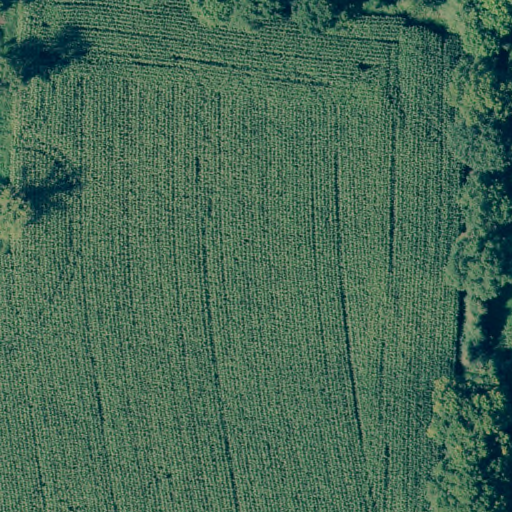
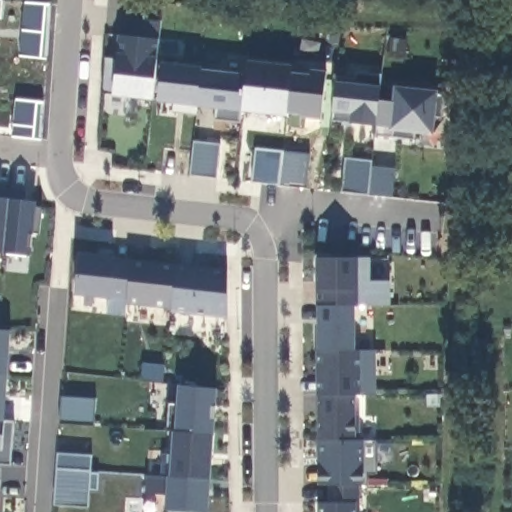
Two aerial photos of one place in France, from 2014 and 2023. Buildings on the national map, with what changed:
new [(159,40),(157,59),(152,101),(113,96),(102,94),(105,58),(117,61),(118,54),(119,35),(129,36),(132,19),(161,23),(159,40)]
new [(405,40),(403,60),(389,59),(392,39),(405,40)]
new [(321,120),(300,118),(301,116),(287,115),(285,118),(241,113),(241,123),(216,121),(215,109),(196,107),(197,116),(172,112),(175,104),(159,102),(162,63),(164,58),(179,59),(179,66),(202,68),(201,70),(247,75),(247,61),(292,66),(292,73),(310,75),(311,71),(327,72),(321,120)]
new [(342,126),(342,123),(332,122),(336,77),(355,79),(355,72),(382,75),(379,102),(395,103),(397,90),(445,95),(442,118),(432,117),(431,132),(416,131),(415,141),(392,138),(393,125),(377,123),(376,127),(351,124),(351,127),(342,126)]
new [(279,186),(264,185),(252,183),(256,149),(268,150),(283,152),(279,186)]
new [(346,159),(372,162),(371,166),(395,169),(392,197),(342,193),(346,159)]
new [(37,202),(35,233),(31,258),(0,254),(0,189),(26,192),(22,201),(37,202)]
new [(127,305),(125,316),(108,315),(110,299),(74,295),(79,254),(115,257),(131,260),(127,305)]
new [(353,305),(327,306),(317,306),(317,291),(316,258),(370,259),(371,282),(388,282),(389,305),(353,305)]
new [(228,318),(171,312),(171,309),(127,305),(131,260),(227,271),(228,318)]
new [(353,305),(354,351),(317,351),(317,306),(327,306),(353,305)]
new [(4,421),(14,423),(11,466),(1,465),(0,473),(0,330),(10,331),(4,421)]
new [(356,396),(356,416),(360,416),(360,440),(319,441),(318,397),(317,395),(317,351),(354,351),(376,350),(376,395),(356,396)]
new [(164,368),(162,383),(142,381),(144,366),(164,368)]
new [(211,479),(208,512),(201,512),(165,510),(166,496),(144,494),(145,477),(166,477),(169,477),(173,431),(167,430),(170,404),(177,405),(179,386),(217,390),(213,434),(211,479)]
new [(61,397),(96,399),(94,427),(59,424),(61,397)]
new [(375,441),(376,474),(365,474),(363,487),(357,486),(359,512),(318,512),(318,504),(326,503),(326,485),(317,486),(319,441),(360,440),(375,441)]
new [(57,454),(92,456),(91,472),(90,490),(55,487),(56,469),(57,454)]

